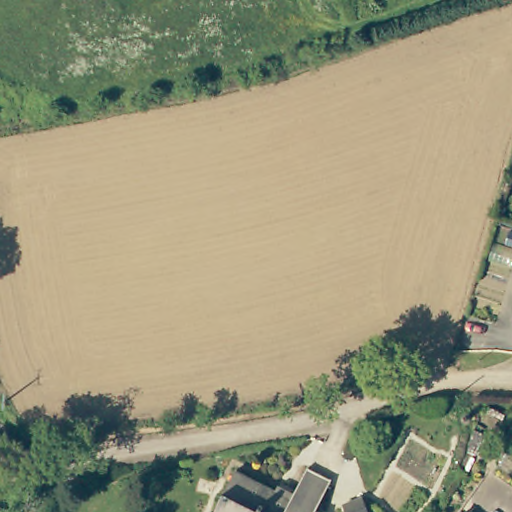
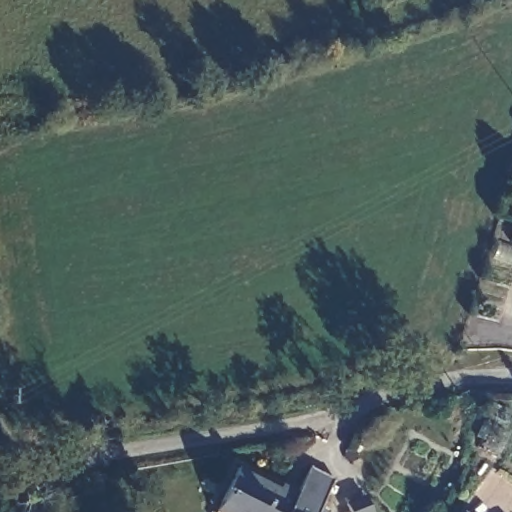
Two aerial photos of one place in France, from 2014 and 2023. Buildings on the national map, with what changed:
unchanged [(331,467),(319,501),(327,505),(324,512),(231,512),(233,506),(225,502),(236,473),(294,492),(308,459),(331,467)]
unchanged [(375,512),(354,512),(351,500),(369,493),(375,512)]

